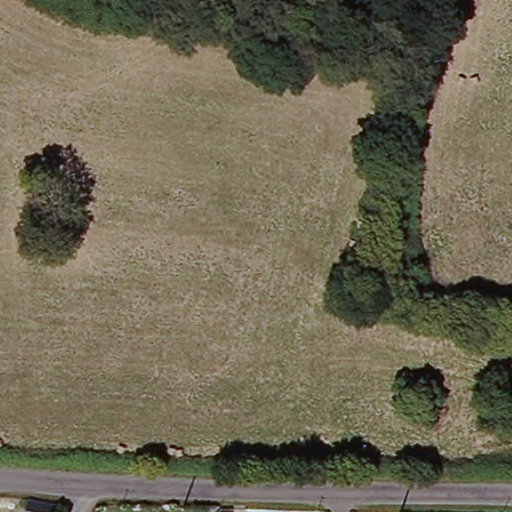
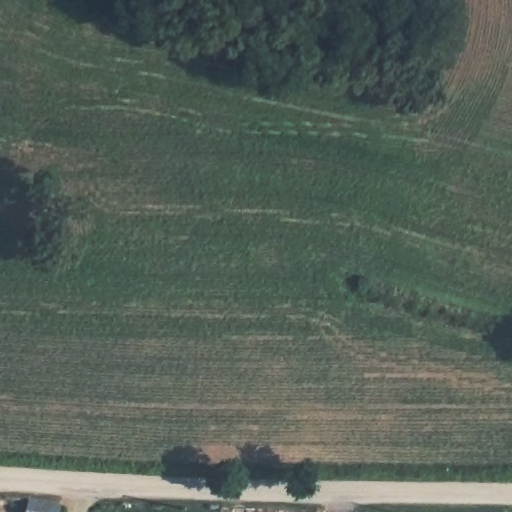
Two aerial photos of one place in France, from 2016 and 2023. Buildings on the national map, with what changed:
unchanged [(56,508),(55,512),(27,512),(28,504),(56,508)]

